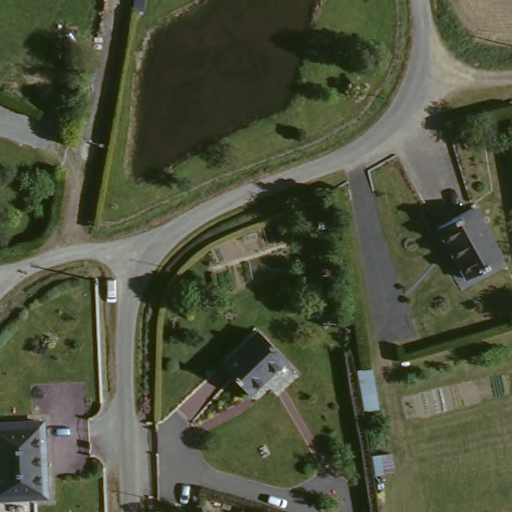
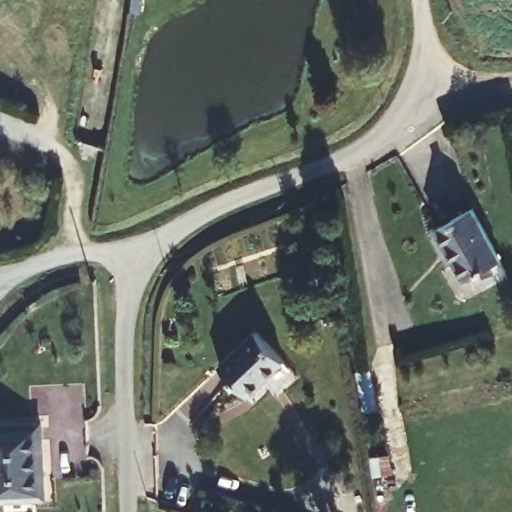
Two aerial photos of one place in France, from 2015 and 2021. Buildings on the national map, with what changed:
unchanged [(473,210),(501,259),(465,281),(437,233),(473,210)]
unchanged [(262,323),(288,363),(247,389),(220,350),(262,323)]
unchanged [(43,421),(49,494),(0,497),(0,424),(43,421)]

